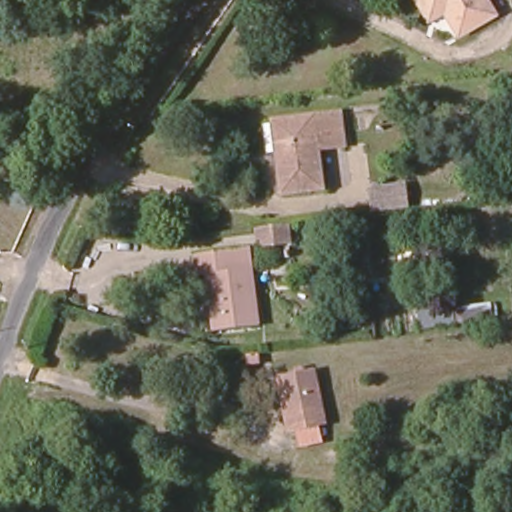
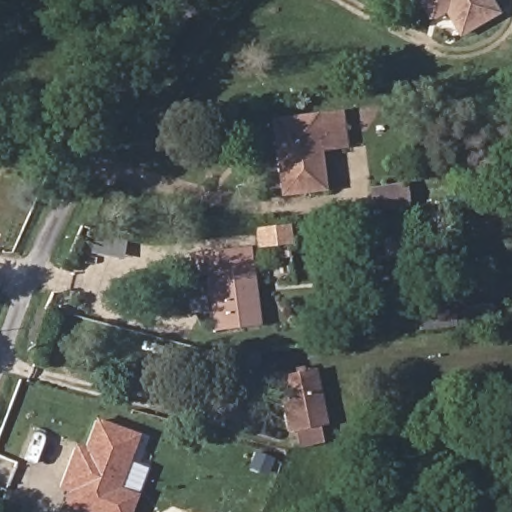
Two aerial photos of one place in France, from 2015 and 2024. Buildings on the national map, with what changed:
unchanged [(495,0),(501,10),(465,30),(451,4),(435,14),(427,0),(495,0)]
unchanged [(341,119),(345,150),(321,153),(324,191),(282,196),(275,126),(341,119)]
unchanged [(361,206),(359,188),(392,184),(394,203),(361,206)]
unchanged [(223,330),(215,274),(203,275),(200,256),(233,251),(245,249),(248,269),(256,326),(223,330)]
unchanged [(281,374),(314,371),(317,393),(321,422),(287,426),(282,388),(281,374)]
new [(118,487),(136,493),(129,512),(75,512),(61,506),(67,492),(57,488),(74,444),(83,447),(94,418),(138,435),(118,487)]

